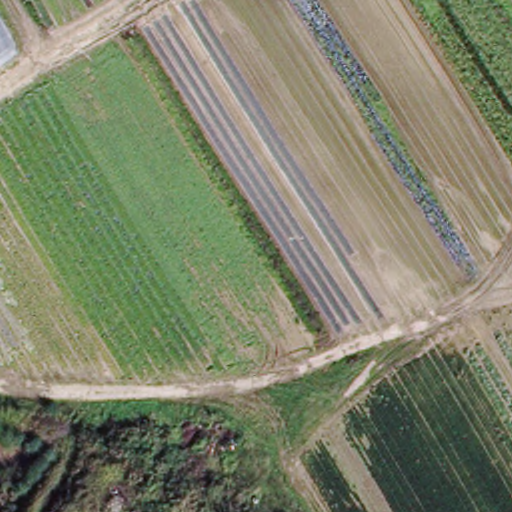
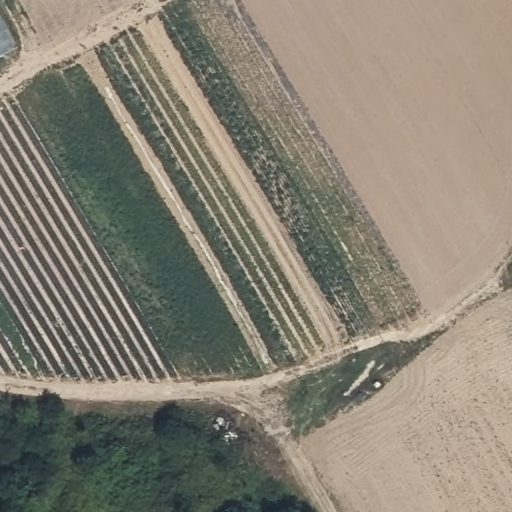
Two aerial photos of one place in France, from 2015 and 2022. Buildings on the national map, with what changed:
unchanged [(0,60),(0,13),(19,49),(0,60)]

